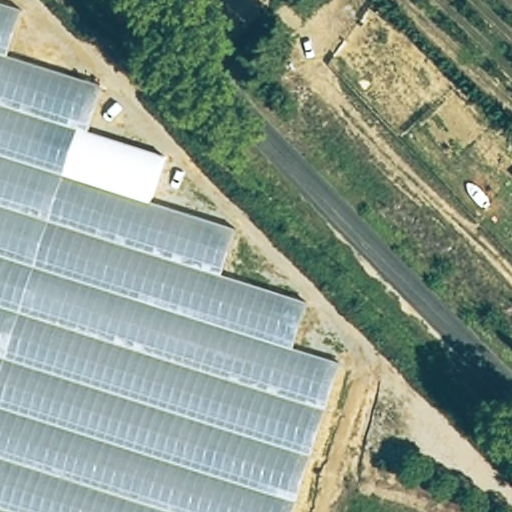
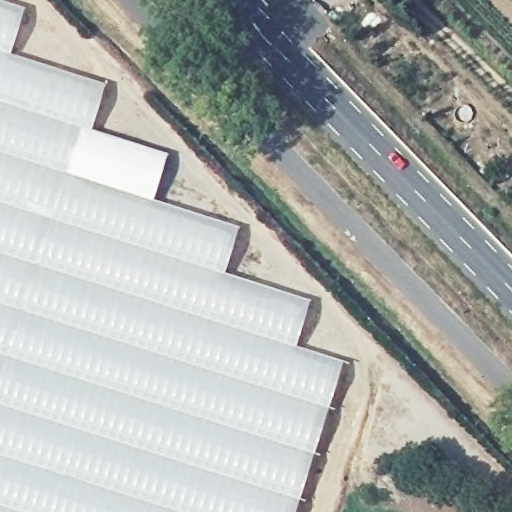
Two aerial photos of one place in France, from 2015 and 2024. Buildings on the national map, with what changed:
unchanged [(12,50),(103,80),(90,127),(166,150),(154,200),(237,225),(223,272),(308,297),(295,344),(342,357),(294,512),(0,512),(0,0),(11,0),(22,3),(12,50)]

